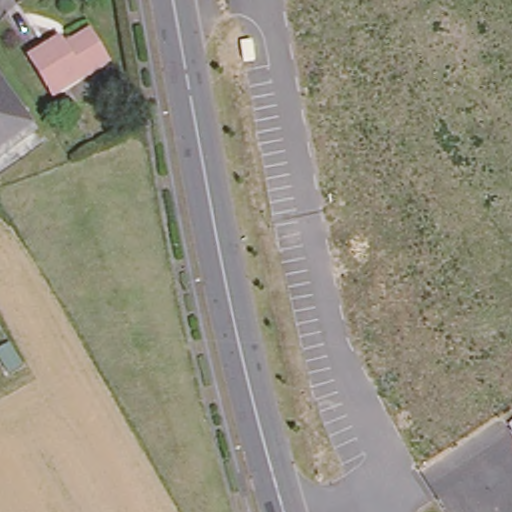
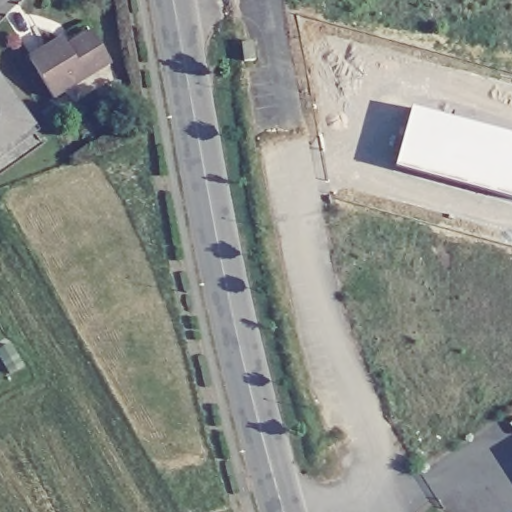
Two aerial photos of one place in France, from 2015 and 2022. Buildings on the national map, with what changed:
unchanged [(33,66),(64,47),(69,54),(93,39),(112,71),(56,104),(33,66)]
unchanged [(27,127),(0,146),(0,90),(27,127)]
new [(512,132),(512,200),(398,167),(416,108),(512,132)]

